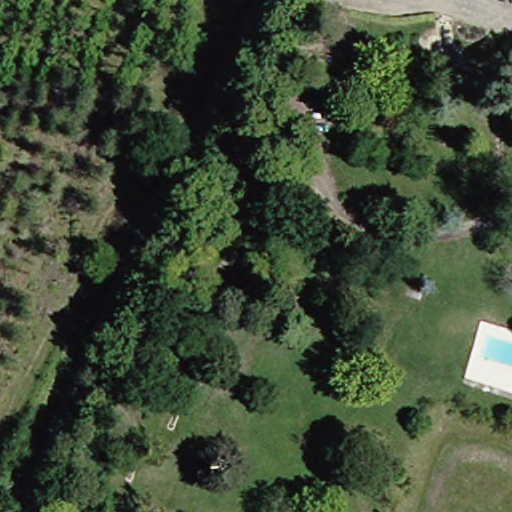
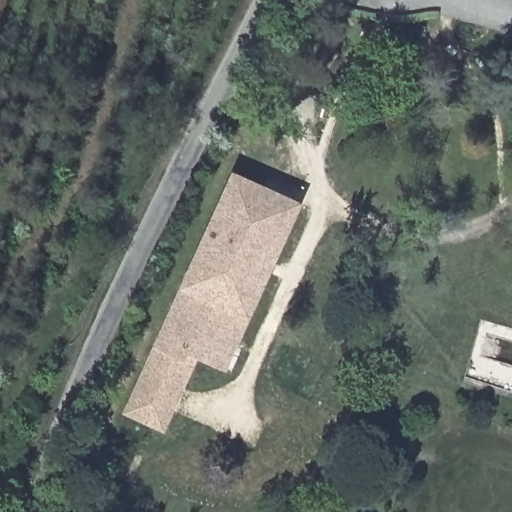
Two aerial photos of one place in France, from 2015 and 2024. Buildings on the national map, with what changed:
new [(156,427),(126,413),(234,176),(300,205),(225,369),(189,353),(197,357),(164,430),(156,427)]

